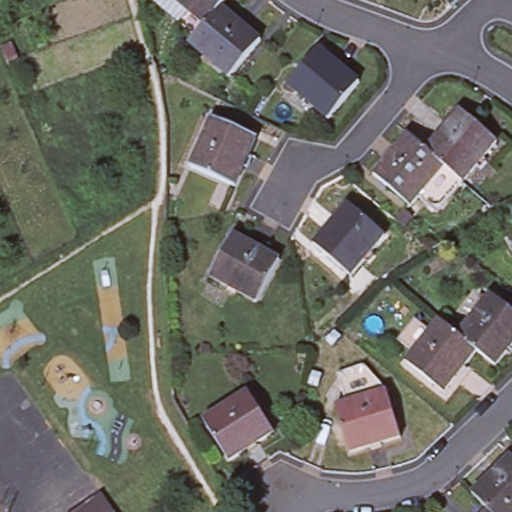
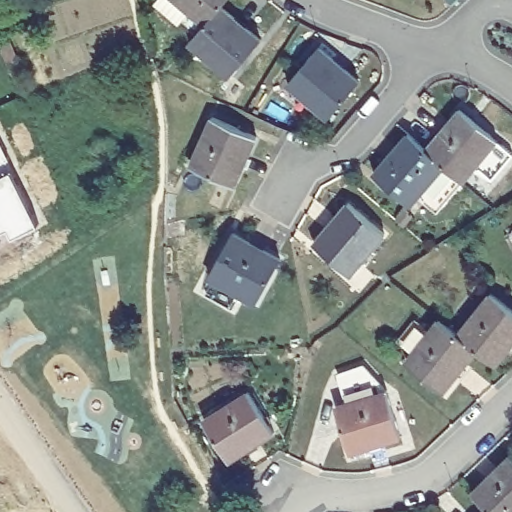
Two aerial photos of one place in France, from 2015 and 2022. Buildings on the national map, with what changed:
unchanged [(194,30),(178,17),(158,0),(221,0),(260,34),(230,70),(189,36),(194,30)]
unchanged [(359,81),(328,118),(288,85),(319,47),(359,81)]
unchanged [(461,105),(498,137),(463,177),(443,160),(426,145),(461,105)]
unchanged [(256,136),(234,186),(190,166),(212,117),(256,136)]
unchanged [(417,190),(410,200),(374,169),(408,129),(426,145),(443,160),(417,190)]
new [(11,243),(5,234),(0,237),(0,146),(37,230),(11,243)]
unchanged [(436,207),(417,190),(443,160),(463,177),(436,207)]
unchanged [(384,235),(349,275),(313,244),(348,204),(384,235)]
unchanged [(280,260),(255,302),(210,275),(233,234),(280,260)]
unchanged [(477,349),(458,334),(492,292),(512,309),(512,344),(496,364),(477,349)]
unchanged [(406,359),(414,350),(400,338),(415,318),(430,330),(440,318),(458,334),(477,349),(443,390),(406,359)]
unchanged [(344,378),(370,371),(392,395),(352,407),(344,378)]
unchanged [(273,431),(229,460),(203,420),(247,391),(273,431)]
unchanged [(405,441),(355,456),(341,410),(352,407),(392,395),(405,441)]
unchanged [(510,451),(512,454),(512,512),(496,512),(489,505),(472,489),(510,451)]
demolished [(112,512),(72,512),(98,493),(112,512)]
unchanged [(489,505),(496,512),(482,512),(489,505)]

